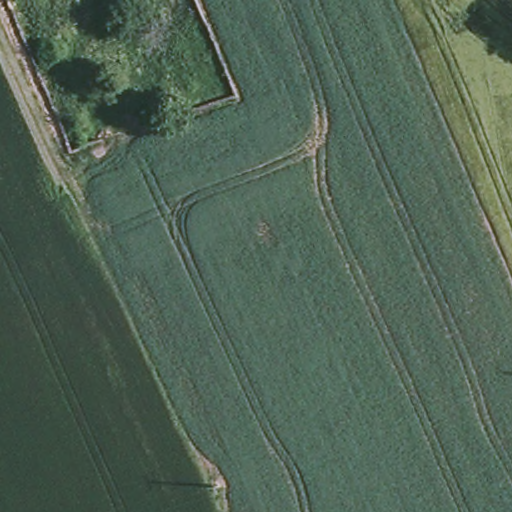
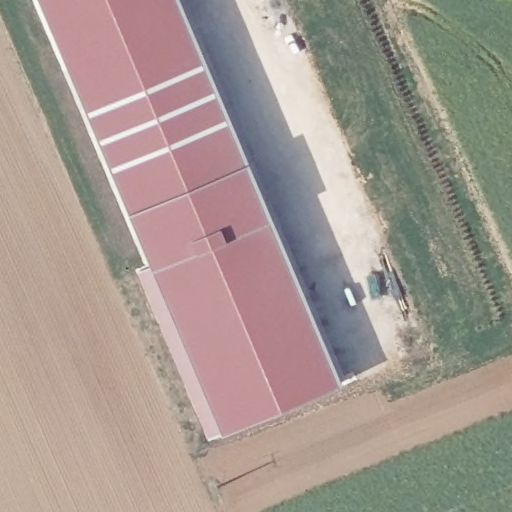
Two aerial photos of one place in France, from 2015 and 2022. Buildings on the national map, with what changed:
new [(208,443),(32,0),(178,0),(340,392),(208,443)]

